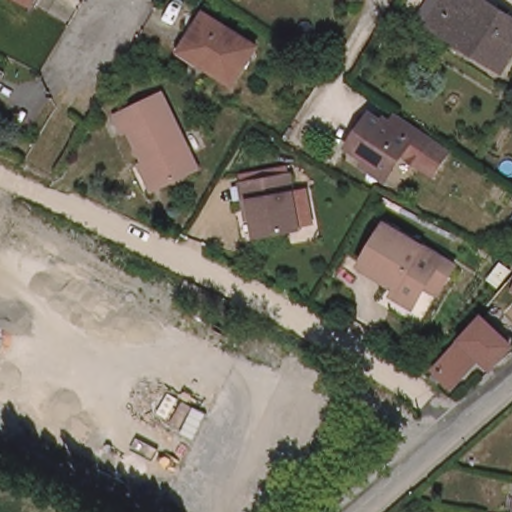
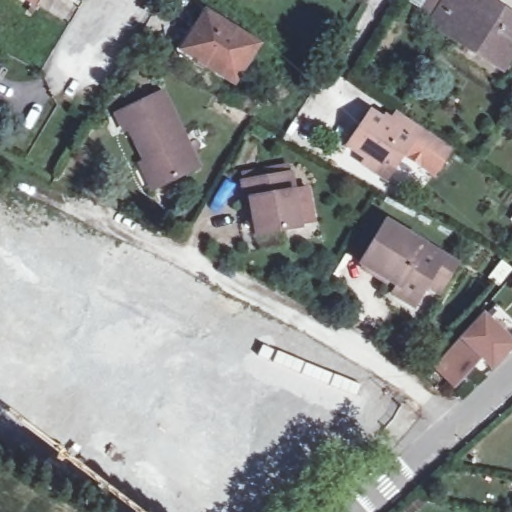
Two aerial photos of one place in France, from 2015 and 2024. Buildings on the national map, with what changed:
unchanged [(31,0),(39,0),(37,4),(31,0)]
unchanged [(486,0),(512,16),(512,45),(500,65),(435,24),(449,0),(486,0)]
unchanged [(257,45),(235,83),(184,54),(205,14),(257,45)]
unchanged [(312,68),(305,79),(294,72),(301,61),(312,68)]
unchanged [(142,165),(147,162),(132,129),(127,131),(119,115),(166,92),(201,166),(158,186),(153,189),(142,165)]
unchanged [(361,162),(364,157),(346,146),(368,111),(386,124),(394,110),(448,145),(431,170),(401,150),(388,170),(383,176),(361,162)]
unchanged [(312,224),(299,226),(300,229),(257,236),(253,214),(246,215),(244,199),(242,184),(240,176),(289,169),(290,175),(293,192),(306,190),(312,224)]
unchanged [(429,285),(416,306),(395,293),(399,286),(364,264),(390,224),(459,266),(450,280),(441,293),(429,285)]
unchanged [(449,371),(442,380),(433,371),(488,315),(512,337),(512,343),(501,356),(490,345),(485,351),(496,361),(491,366),(480,356),(458,380),(449,371)]

